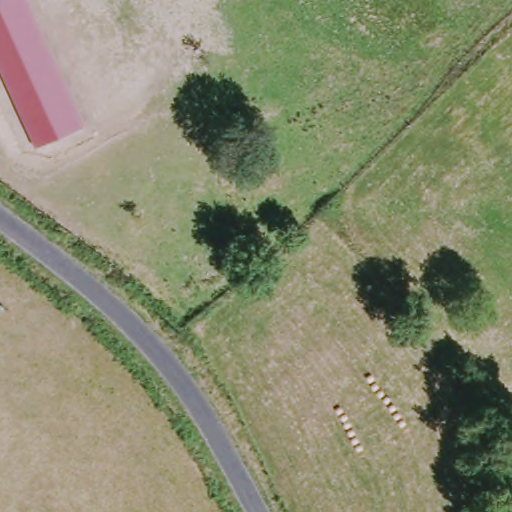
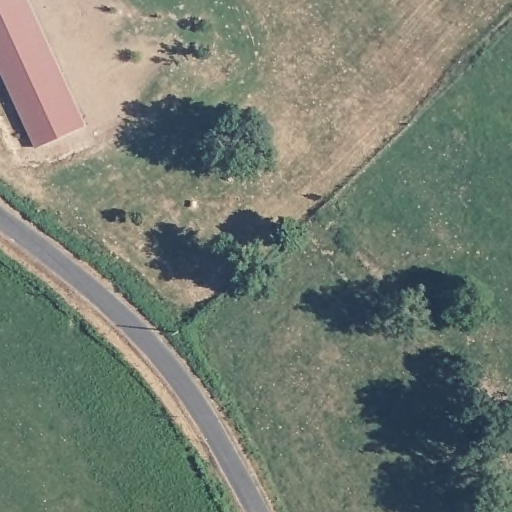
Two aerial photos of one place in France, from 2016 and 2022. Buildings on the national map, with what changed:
unchanged [(35,149),(0,71),(0,0),(29,0),(85,124),(35,149)]

